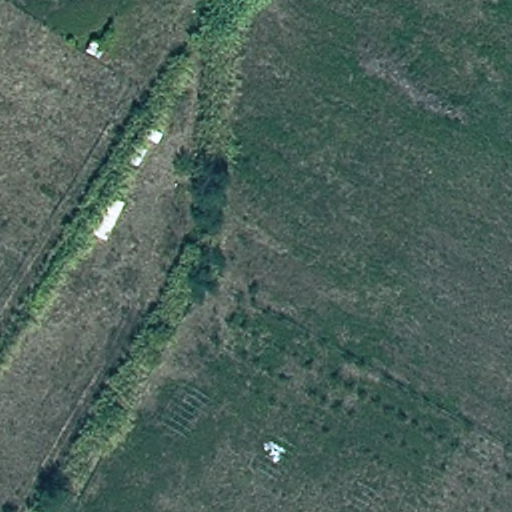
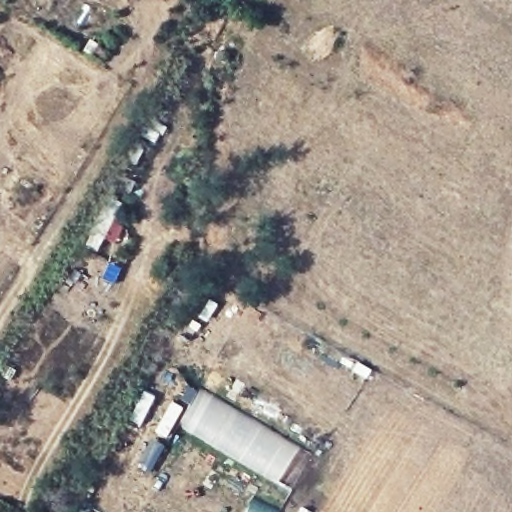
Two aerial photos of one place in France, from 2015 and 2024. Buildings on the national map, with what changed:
new [(290,491),(177,423),(198,390),(309,458),(290,491)]

